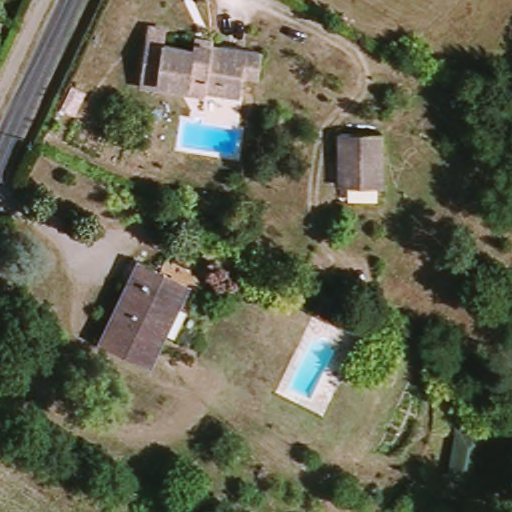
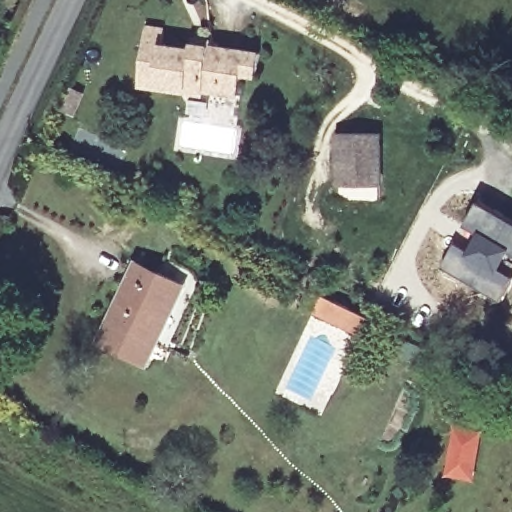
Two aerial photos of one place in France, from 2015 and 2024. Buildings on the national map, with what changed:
unchanged [(140,92),(142,76),(148,33),(166,36),(164,49),(194,54),(195,49),(212,51),(261,59),(258,83),(243,80),(240,101),(157,89),(156,95),(140,92)]
unchanged [(382,135),(382,186),(345,186),(344,165),(339,165),(339,135),(382,135)]
new [(479,200),(512,218),(512,244),(483,228),(480,231),(467,223),(479,200)]
new [(458,241),(471,248),(480,231),(483,228),(512,244),(512,258),(508,266),(512,269),(512,286),(504,300),(444,266),(458,241)]
unchanged [(106,343),(142,265),(184,285),(147,362),(106,343)]
unchanged [(369,318),(362,334),(316,313),(323,297),(369,318)]
new [(448,476),(456,428),(486,435),(475,479),(448,476)]

